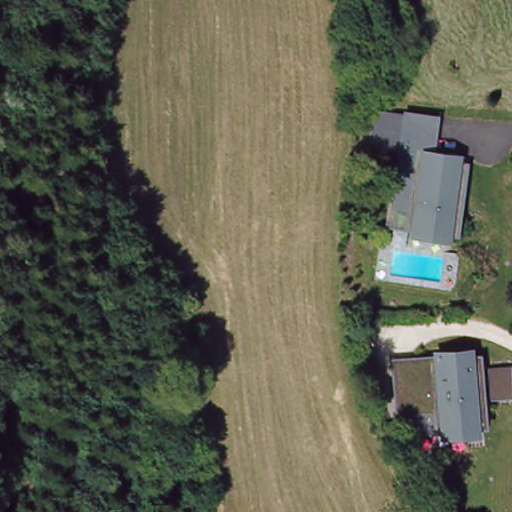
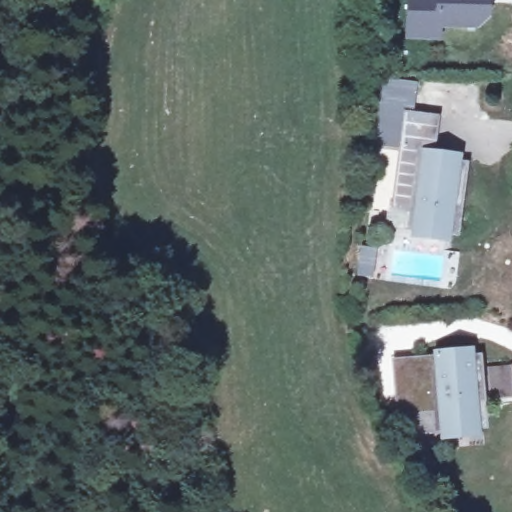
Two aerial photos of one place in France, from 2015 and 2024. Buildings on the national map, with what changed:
new [(474,30),(439,29),(439,41),(404,39),(405,0),(489,0),(488,19),(474,30)]
unchanged [(373,146),(377,114),(407,118),(432,120),(429,154),(425,154),(424,161),(402,159),(403,150),(373,146)]
unchanged [(429,154),(456,158),(455,165),(462,166),(455,230),(447,229),(447,237),(416,233),(417,225),(410,224),(412,205),(397,204),(402,159),(424,161),(425,154),(429,154)]
unchanged [(470,350),(470,358),(477,357),(480,376),(489,375),(488,366),(511,364),(512,374),(512,394),(491,397),(491,387),(490,387),(481,387),(484,422),(477,422),(477,429),(447,432),(447,424),(440,425),(437,406),(422,407),(403,409),(398,362),(417,360),(440,358),(439,353),(470,350)]

